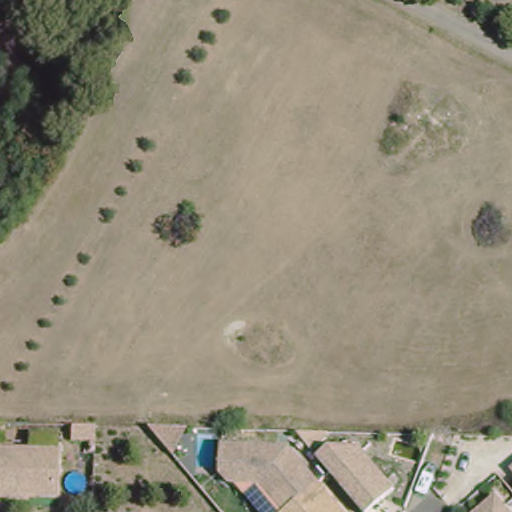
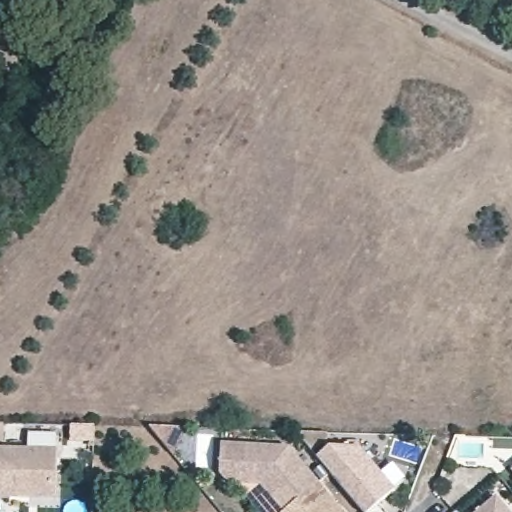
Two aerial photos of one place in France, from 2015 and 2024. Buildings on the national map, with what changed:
unchanged [(319,475),(284,503),(263,478),(231,477),(221,466),(222,437),(289,440),(319,475)]
unchanged [(393,487),(364,511),(331,471),(316,453),(328,443),(358,445),(393,487)]
unchanged [(5,493),(0,493),(0,445),(56,448),(53,494),(35,493),(21,492),(5,491),(5,493)]
unchanged [(319,475),(348,512),(273,512),(284,503),(319,475)]
unchanged [(512,506),(512,512),(472,512),(499,490),(512,506)]

